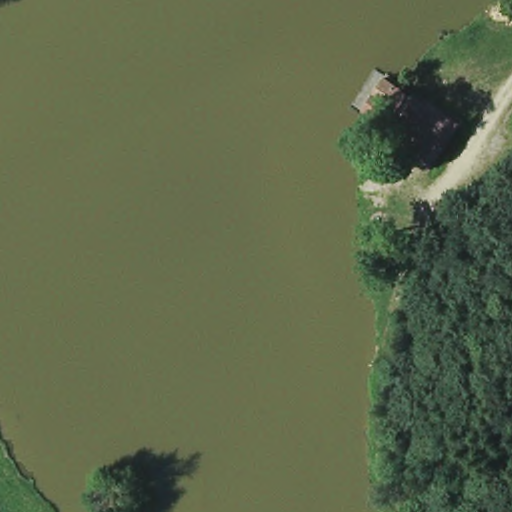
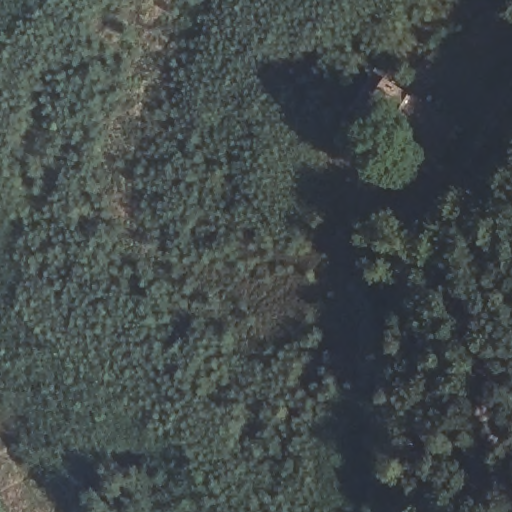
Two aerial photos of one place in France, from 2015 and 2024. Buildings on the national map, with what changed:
unchanged [(463,122),(439,162),(412,147),(434,105),(463,122)]

